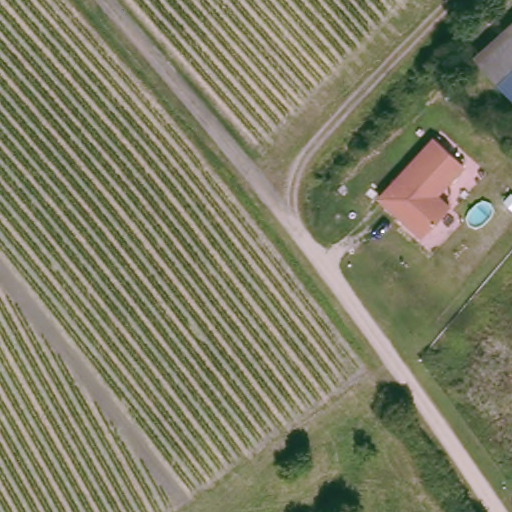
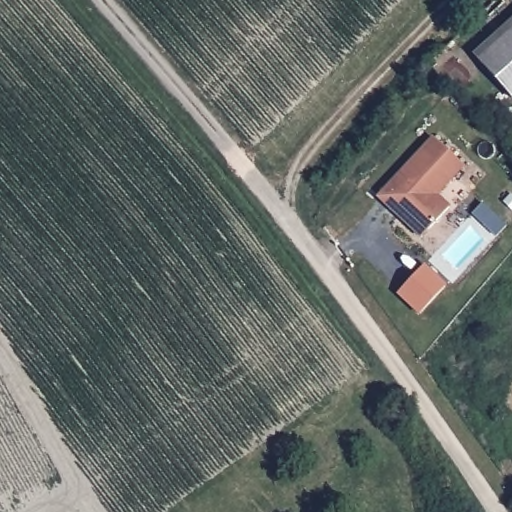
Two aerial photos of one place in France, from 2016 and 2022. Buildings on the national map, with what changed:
unchanged [(478,58),(512,26),(512,94),(478,58)]
unchanged [(437,194),(450,206),(431,228),(415,229),(400,215),(403,212),(398,206),(395,210),(380,197),(435,137),(465,164),(437,194)]
new [(421,312),(397,293),(422,265),(445,284),(421,312)]

